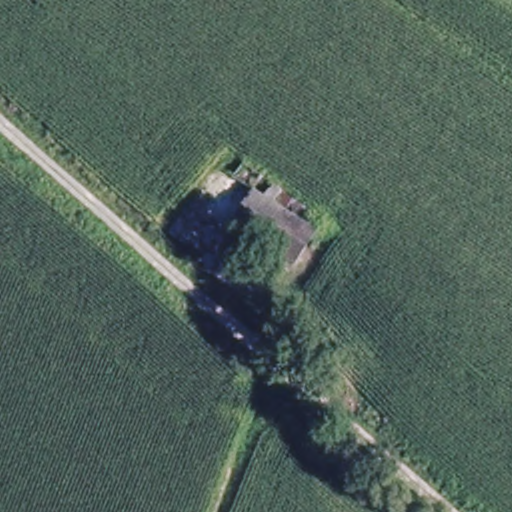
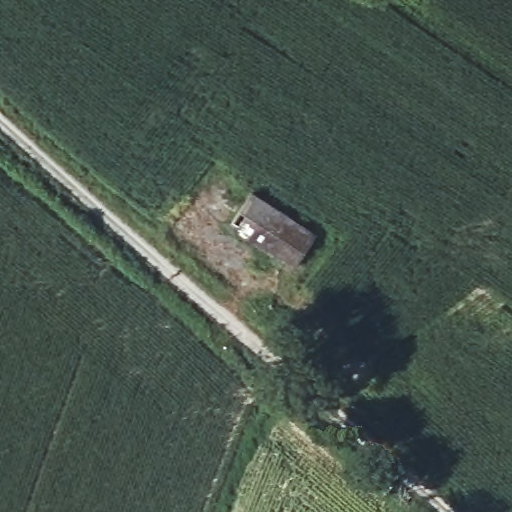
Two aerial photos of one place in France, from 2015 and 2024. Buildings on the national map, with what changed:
unchanged [(241,158),(265,169),(254,185),(320,225),(290,275),(205,215),(241,158)]

